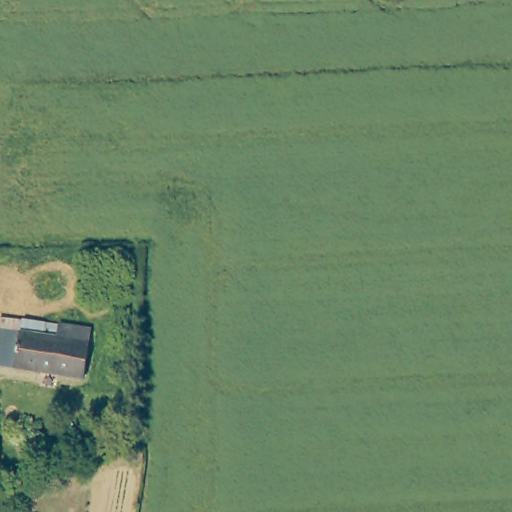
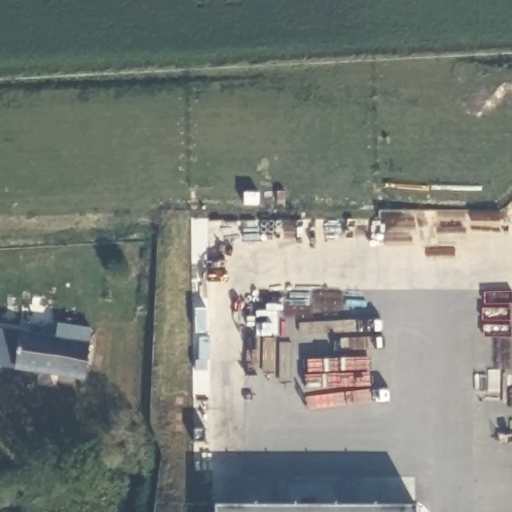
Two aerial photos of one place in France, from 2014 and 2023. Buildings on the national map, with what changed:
unchanged [(38,332),(39,317),(52,319),(84,322),(78,375),(10,366),(0,364),(0,328),(13,330),(38,332)]
unchanged [(0,500),(9,501),(9,512),(0,512),(0,500)]
new [(415,512),(215,512),(215,504),(415,505),(415,512)]

